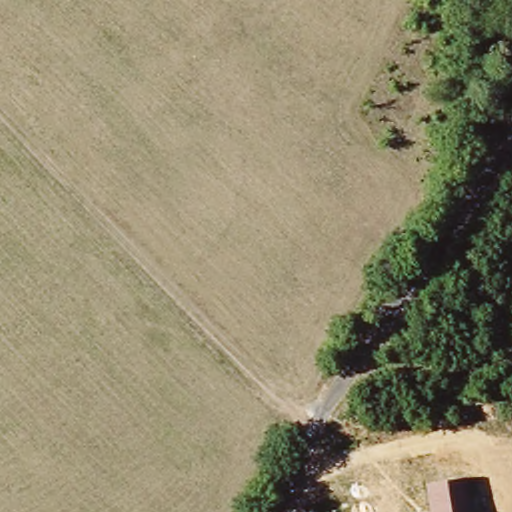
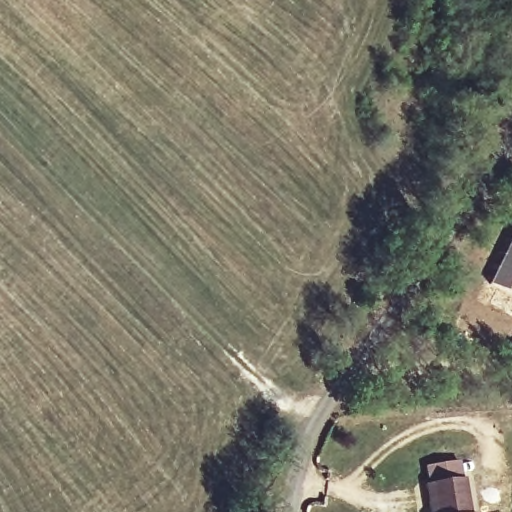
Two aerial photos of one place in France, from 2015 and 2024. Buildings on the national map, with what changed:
new [(490,285),(512,240),(512,295),(490,285)]
unchanged [(427,485),(466,478),(471,512),(430,512),(427,485)]

